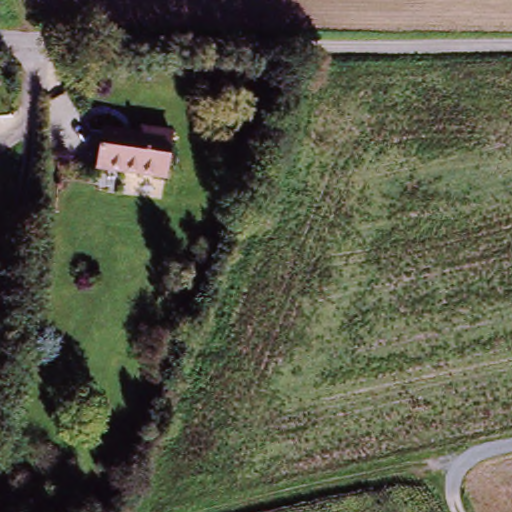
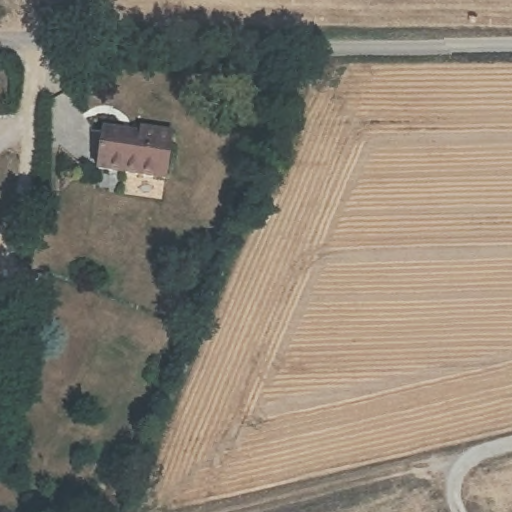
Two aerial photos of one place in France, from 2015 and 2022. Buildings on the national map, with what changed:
unchanged [(145,133),(173,137),(167,180),(100,169),(105,131),(144,136),(145,133)]

